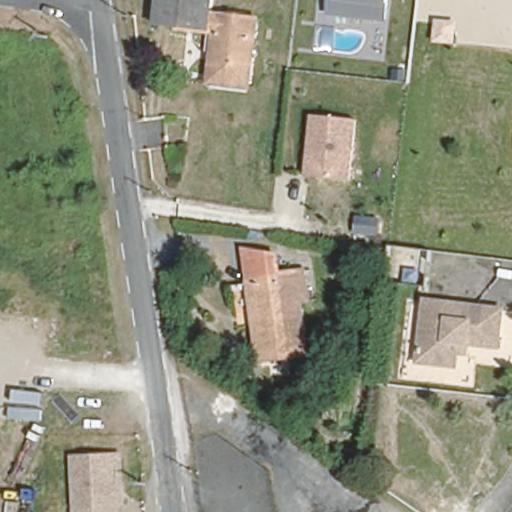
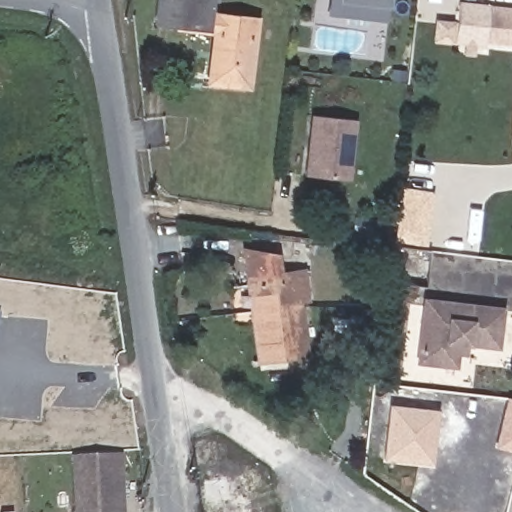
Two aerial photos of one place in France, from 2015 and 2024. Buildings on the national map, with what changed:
unchanged [(210,20),(222,20),(222,16),(256,20),(249,89),(208,85),(214,31),(155,25),(157,0),(213,0),(210,20)]
unchanged [(388,21),(326,16),(328,0),(391,0),(388,21)]
new [(512,9),(512,48),(433,40),(435,24),(449,25),(456,22),(459,1),(490,6),(512,9)]
unchanged [(356,117),(352,179),(305,177),(310,114),(356,117)]
new [(401,187),(435,192),(428,242),(397,237),(401,187)]
unchanged [(353,251),(355,240),(360,205),(373,207),(369,241),(367,253),(353,251)]
unchanged [(428,248),(425,287),(385,282),(386,244),(428,248)]
unchanged [(282,252),(283,270),(306,268),(310,305),(303,305),(310,357),(256,363),(240,246),(282,252)]
unchanged [(454,357),(452,370),(415,365),(421,301),(502,310),(499,350),(467,346),(466,358),(454,357)]
new [(495,448),(507,396),(512,397),(512,453),(495,448)]
new [(433,465),(384,459),(389,404),(440,410),(433,465)]
unchanged [(124,512),(70,512),(67,453),(121,450),(124,512)]

